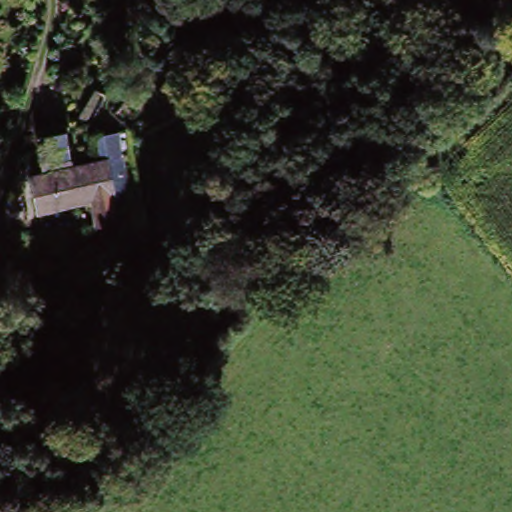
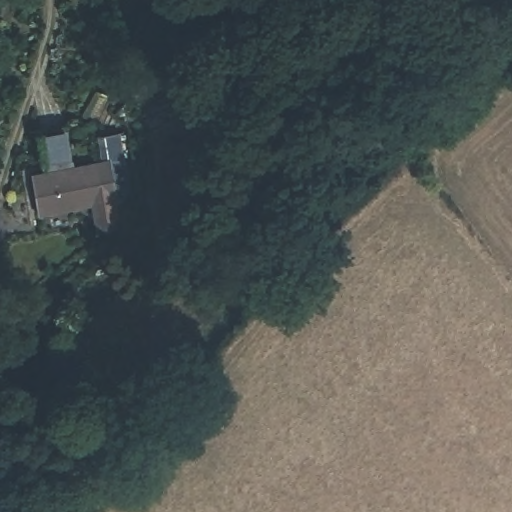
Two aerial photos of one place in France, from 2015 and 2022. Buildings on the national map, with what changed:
unchanged [(83,139),(84,169),(115,168),(115,238),(95,240),(93,204),(43,207),(42,170),(55,170),(54,140),(83,139)]
unchanged [(131,153),(131,166),(114,167),(114,154),(131,153)]
unchanged [(57,310),(47,337),(28,332),(38,304),(57,310)]

